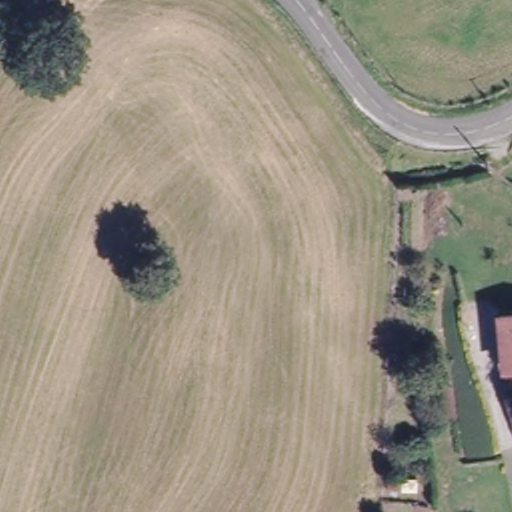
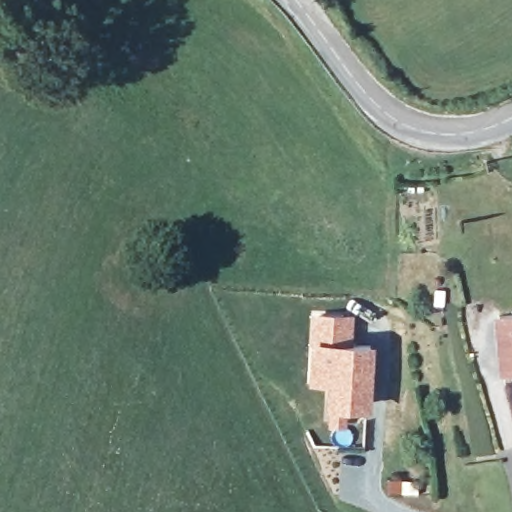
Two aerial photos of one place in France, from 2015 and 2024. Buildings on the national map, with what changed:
new [(353,315),(352,342),(375,343),(371,409),(327,406),(328,383),(310,381),(312,313),(353,315)]
unchanged [(512,318),(512,367),(501,368),(498,318),(512,318)]

